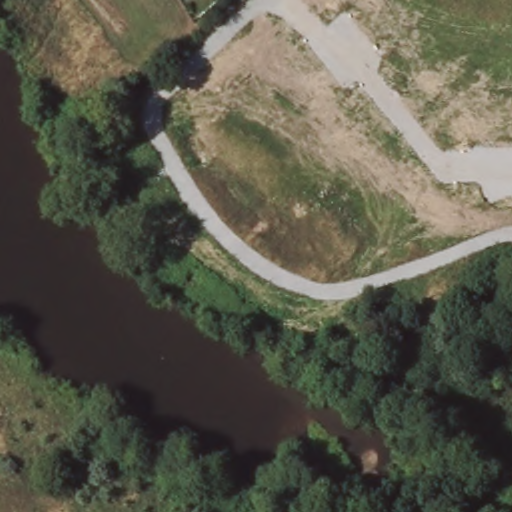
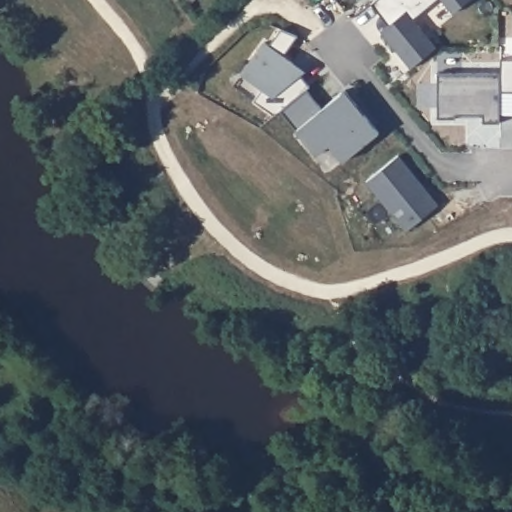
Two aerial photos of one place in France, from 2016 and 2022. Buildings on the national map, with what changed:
new [(412,68),(409,64),(382,31),(389,25),(372,4),(376,0),(437,0),(414,19),(434,43),(437,47),(412,68)]
new [(454,14),(443,0),(470,0),(454,14)]
new [(269,45),(281,29),(299,35),(284,55),(294,62),(305,71),(301,75),(310,86),(307,89),(281,110),(275,115),(254,100),(263,88),(243,74),(265,42),(269,45)]
new [(438,73),(501,72),(501,123),(484,123),(484,115),(457,115),(457,119),(438,119),(438,73)]
new [(323,108),(346,90),(358,105),(366,114),(380,131),(344,161),(330,145),(318,155),(281,110),(307,89),(323,108)]
new [(399,155),(439,205),(408,231),(367,181),(399,155)]

